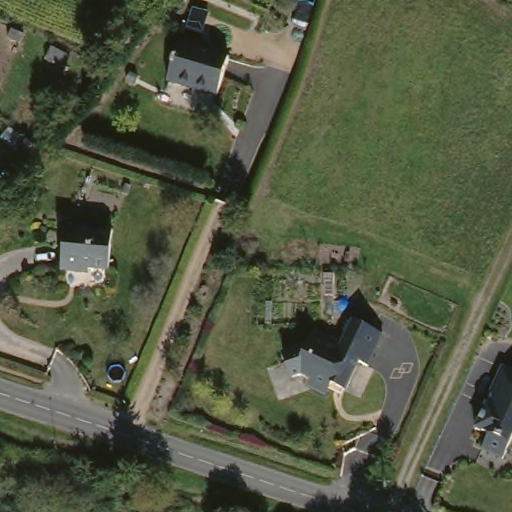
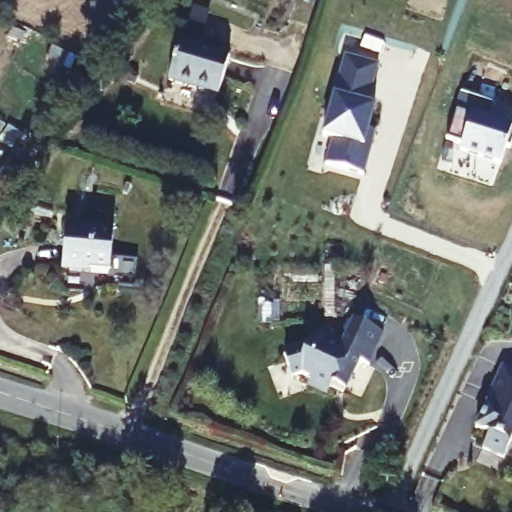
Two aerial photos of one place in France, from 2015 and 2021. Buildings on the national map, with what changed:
unchanged [(228,58),(213,98),(165,82),(178,41),(228,58)]
new [(334,97),(336,97),(338,90),(336,89),(345,57),(378,66),(369,98),(366,98),(364,105),(374,108),(368,131),(375,132),(363,176),(325,166),(333,140),(323,137),(334,97)]
new [(493,101),(487,118),(512,126),(512,135),(508,146),(505,145),(499,162),(459,149),(461,142),(445,138),(460,91),(493,101)]
unchanged [(1,196),(0,198),(0,195),(1,196)]
unchanged [(108,232),(102,270),(89,267),(86,276),(59,273),(65,227),(108,232)]
unchanged [(383,331),(369,363),(360,359),(349,383),(335,377),(331,386),(325,389),(314,384),(312,378),(302,374),(294,377),(285,353),(309,344),(316,330),(343,342),(353,318),(383,331)]
unchanged [(490,436),(477,430),(489,406),(496,409),(501,399),(493,395),(506,369),(512,372),(512,444),(503,461),(483,451),(490,436)]

